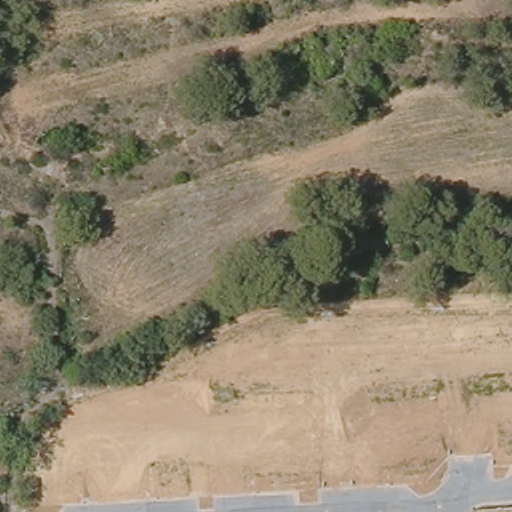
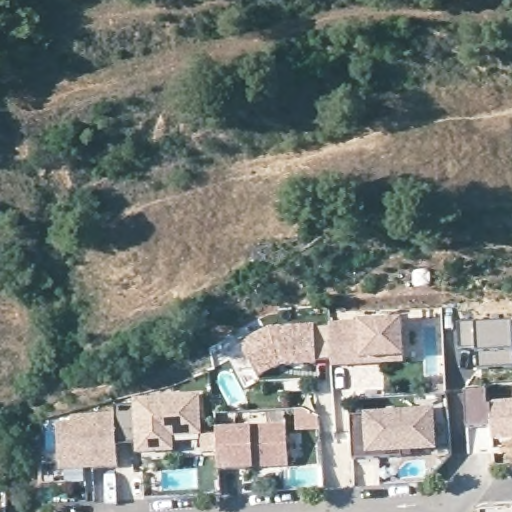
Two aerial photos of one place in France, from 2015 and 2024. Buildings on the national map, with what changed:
new [(268,326),(315,322),(315,326),(329,326),(329,323),(402,317),(404,363),(332,367),(331,360),(317,360),(317,365),(280,367),(259,378),(239,341),(268,326)]
new [(478,351),(461,347),(459,322),(477,325),(512,325),(512,367),(479,370),(478,351)]
new [(485,388),(487,401),(512,399),(512,438),(491,439),(490,426),(467,428),(465,390),(485,388)]
new [(114,413),(114,405),(132,405),(132,397),(199,392),(202,435),(174,436),(175,452),(137,455),(135,443),(117,445),(118,468),(59,472),(56,422),(70,422),(70,415),(114,413)]
new [(364,415),(364,412),(433,407),(436,450),(411,451),(412,457),(352,460),(350,415),(364,415)]
new [(285,422),(288,467),(219,470),(215,426),(285,422)]
unchanged [(7,467),(0,468),(0,437),(7,435),(7,467)]

